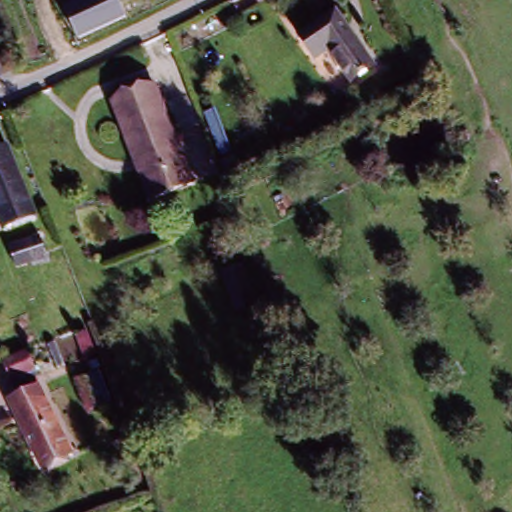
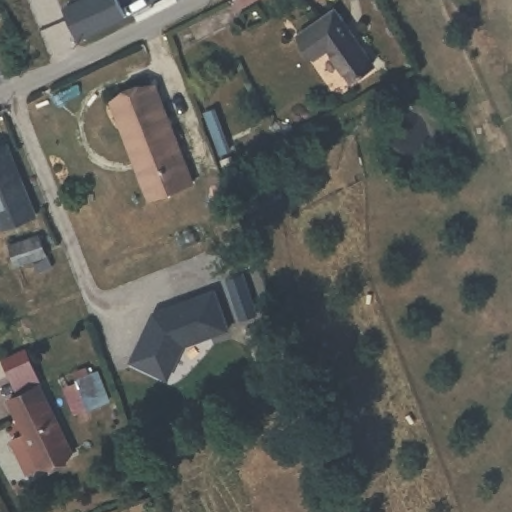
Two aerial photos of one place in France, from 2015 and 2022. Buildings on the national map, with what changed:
unchanged [(127,17),(80,37),(67,7),(81,0),(119,0),(127,17)]
unchanged [(341,10),(372,71),(345,83),(327,49),(313,57),(300,29),(341,10)]
unchanged [(134,159),(112,100),(157,82),(194,180),(156,195),(148,197),(134,159)]
unchanged [(5,145),(23,186),(0,192),(0,147),(5,145)]
unchanged [(23,186),(37,220),(10,232),(0,210),(0,192),(23,186)]
new [(235,270),(249,308),(234,315),(220,276),(235,270)]
new [(145,326),(147,327),(150,318),(148,317),(152,311),(212,288),(226,326),(180,342),(165,376),(129,358),(145,326)]
unchanged [(20,403),(41,393),(71,463),(50,472),(20,403)]

